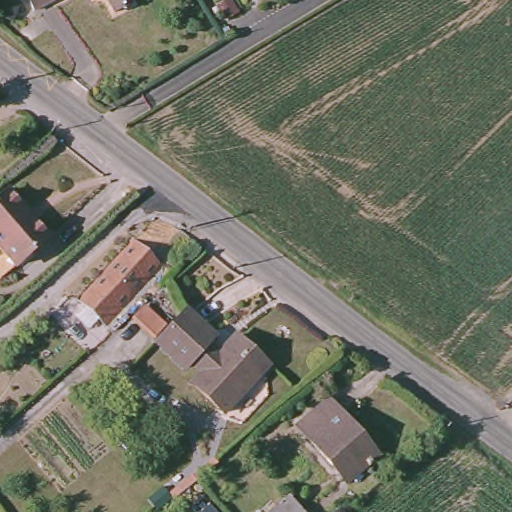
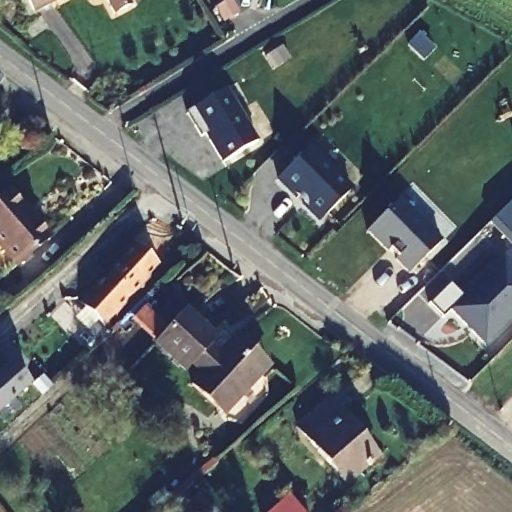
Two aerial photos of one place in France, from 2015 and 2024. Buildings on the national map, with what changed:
unchanged [(29,0),(59,0),(35,13),(29,0)]
unchanged [(114,15),(106,0),(133,0),(135,2),(114,15)]
new [(259,141),(221,164),(206,136),(199,140),(184,112),(226,87),(259,141)]
new [(310,149),(352,191),(320,222),(279,180),(310,149)]
unchanged [(0,246),(0,199),(9,191),(49,237),(17,265),(0,246)]
new [(442,244),(410,276),(396,262),(397,261),(390,252),(388,255),(367,234),(399,202),(442,244)]
new [(512,202),(512,247),(489,224),(512,202)]
unchanged [(80,315),(72,309),(133,244),(161,268),(102,332),(95,327),(87,321),(80,315)]
new [(449,312),(442,318),(430,305),(450,284),(462,296),(503,254),(512,263),(512,320),(485,347),(449,312)]
unchanged [(188,386),(200,374),(189,364),(181,372),(152,347),(184,309),(215,335),(207,347),(219,356),(230,345),(239,333),(271,365),(264,373),(221,414),(188,386)]
unchanged [(145,310),(162,325),(152,335),(134,321),(145,310)]
new [(8,370),(27,391),(0,416),(0,377),(8,370)]
demolished [(8,383),(0,390),(0,371),(8,383)]
unchanged [(326,402),(375,458),(344,489),(295,431),(326,402)]
unchanged [(299,512),(264,512),(283,495),(299,512)]

